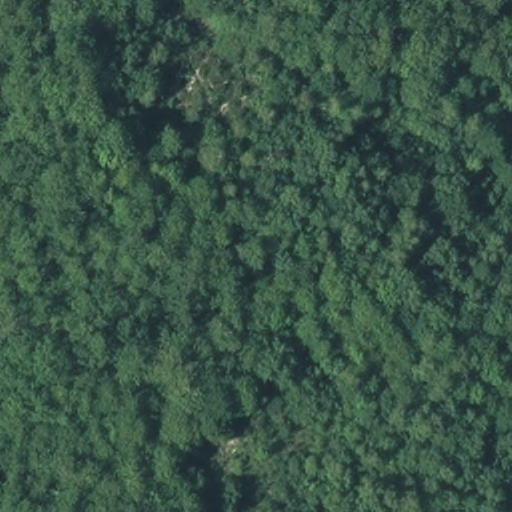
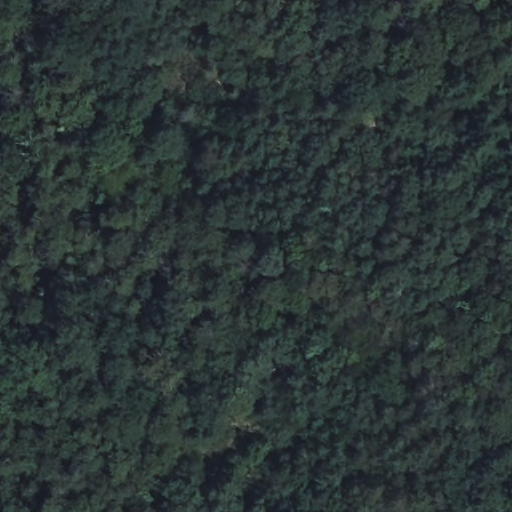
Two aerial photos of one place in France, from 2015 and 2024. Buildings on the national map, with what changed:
[]

